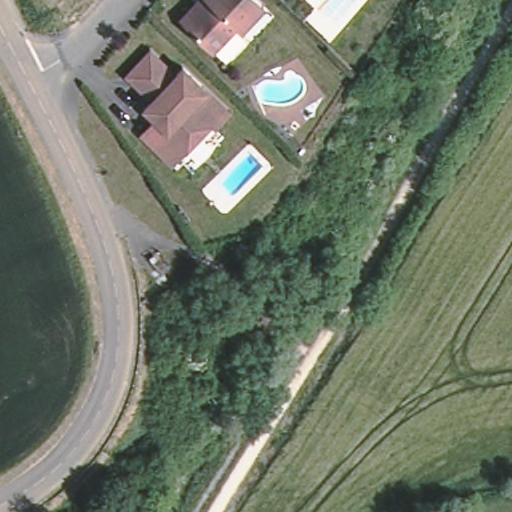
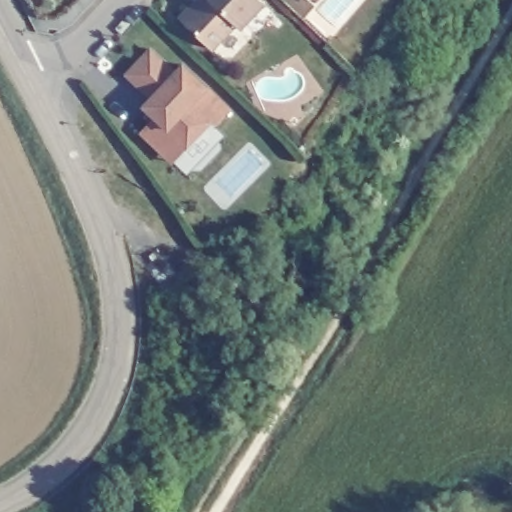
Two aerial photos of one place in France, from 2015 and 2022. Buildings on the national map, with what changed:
unchanged [(216,50),(187,23),(187,15),(197,5),(205,5),(210,0),(261,0),(266,5),(242,30),(238,26),(216,50)]
unchanged [(363,0),(339,29),(318,11),(329,0),(363,0)]
unchanged [(163,152),(144,134),(158,119),(146,107),(155,99),(130,76),(153,51),(178,75),(185,67),(231,111),(216,126),(213,124),(185,153),(175,163),(163,152)]

